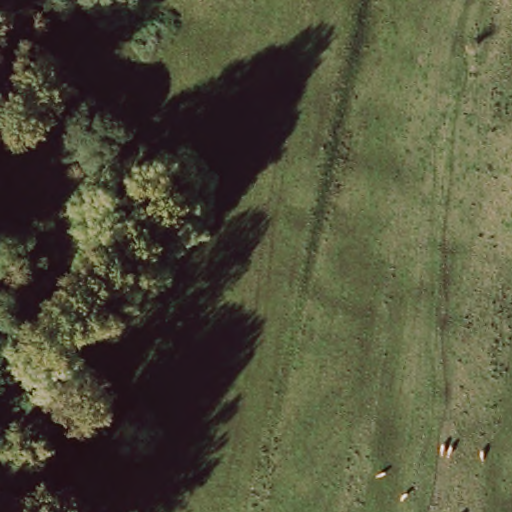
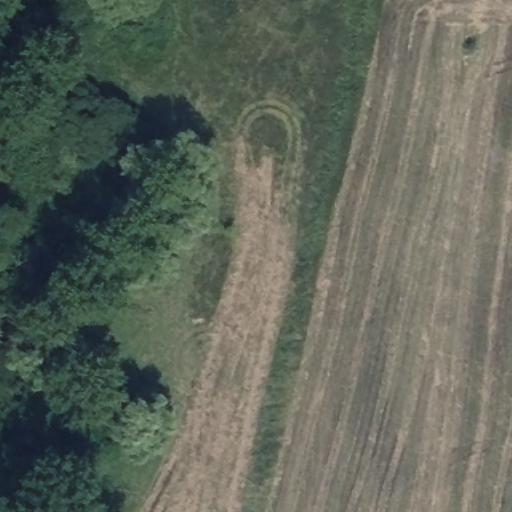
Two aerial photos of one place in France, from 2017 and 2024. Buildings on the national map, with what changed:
unchanged [(113,12),(99,2),(100,0),(121,0),(113,12)]

